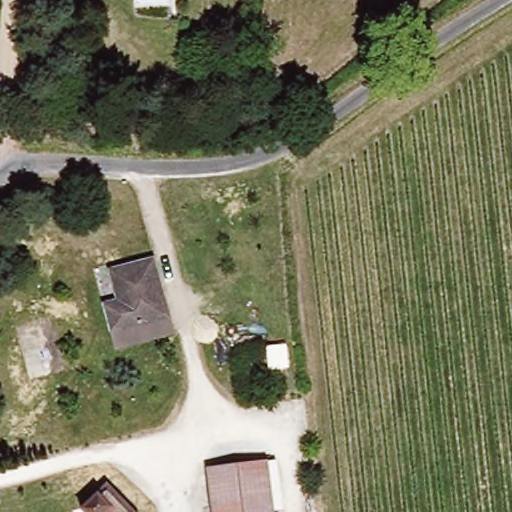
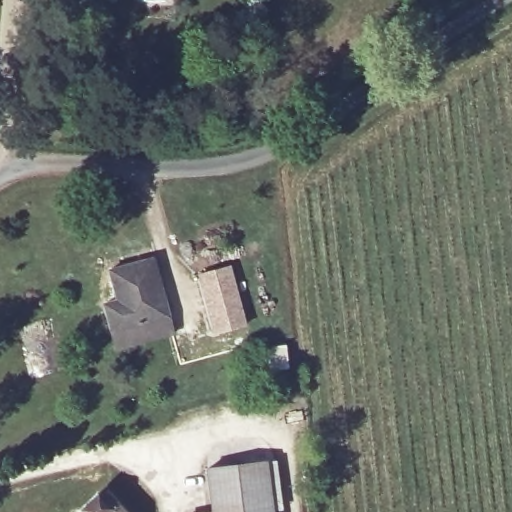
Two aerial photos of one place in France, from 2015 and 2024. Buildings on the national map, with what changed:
unchanged [(155,258),(170,317),(114,332),(106,304),(120,301),(112,268),(155,258)]
new [(195,274),(229,265),(246,325),(212,333),(195,274)]
unchanged [(271,512),(216,512),(210,472),(266,466),(271,512)]
unchanged [(127,512),(80,512),(79,511),(106,487),(127,512)]

